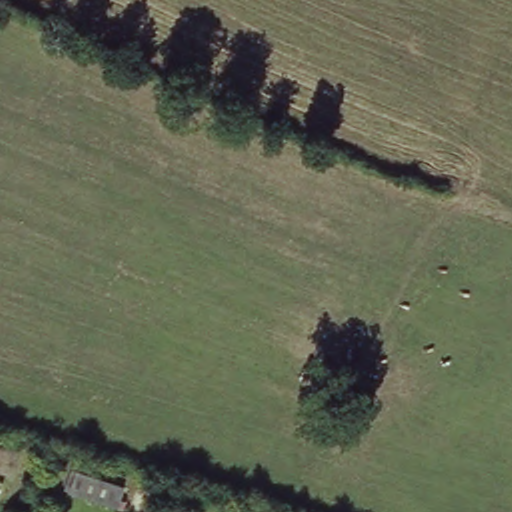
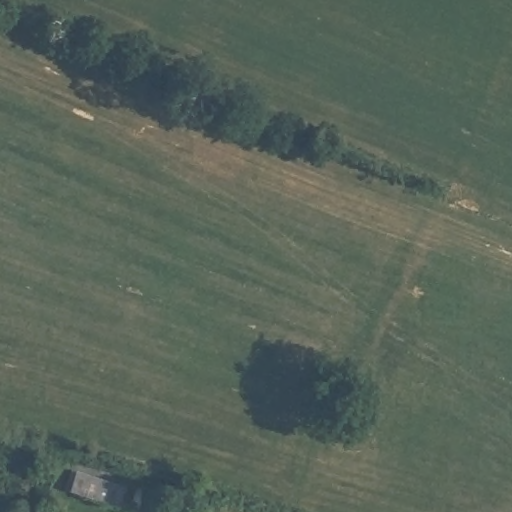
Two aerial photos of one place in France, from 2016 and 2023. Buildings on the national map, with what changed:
unchanged [(123,488),(117,508),(64,491),(70,472),(123,488)]

